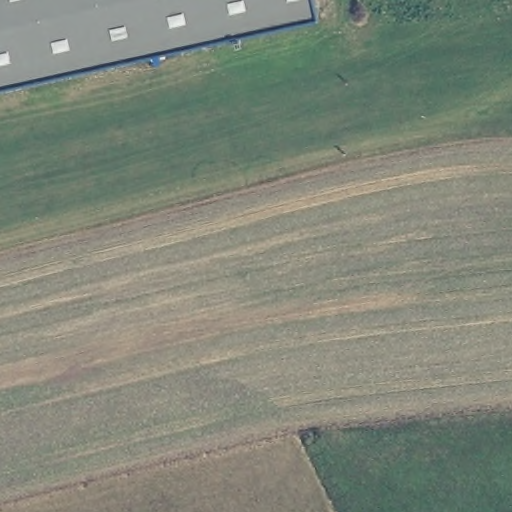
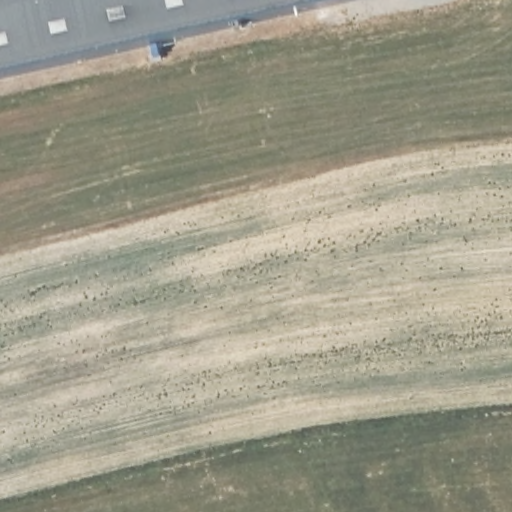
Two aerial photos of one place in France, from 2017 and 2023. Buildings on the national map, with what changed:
unchanged [(0,80),(0,0),(315,0),(317,8),(0,80)]

